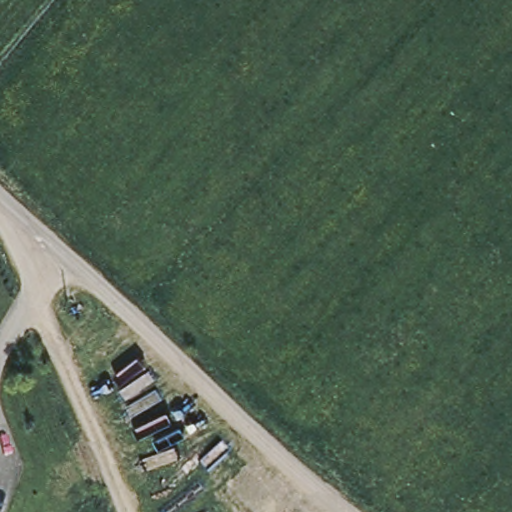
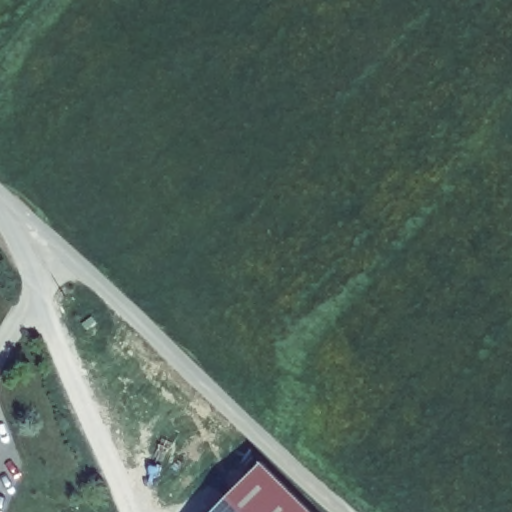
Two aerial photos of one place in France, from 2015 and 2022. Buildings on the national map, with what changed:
new [(212,512),(262,463),(312,512),(212,512)]

